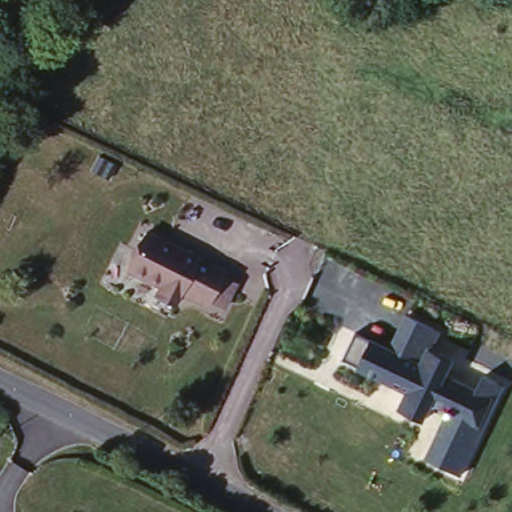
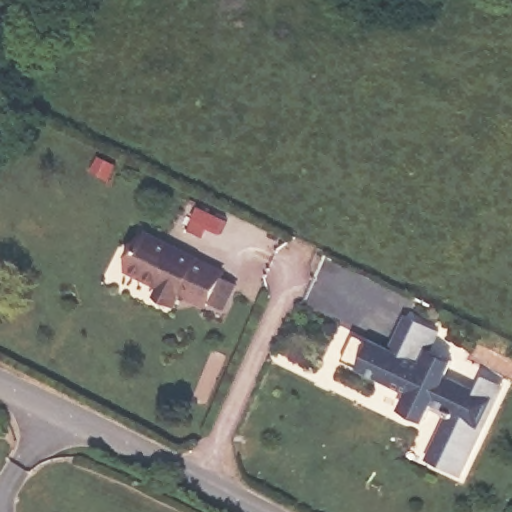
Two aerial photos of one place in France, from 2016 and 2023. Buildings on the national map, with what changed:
unchanged [(162,293),(164,289),(167,282),(135,265),(154,230),(231,270),(212,305),(186,291),(182,298),(180,303),(162,293)]
unchanged [(388,347),(403,315),(436,330),(426,350),(453,360),(444,378),(459,385),(467,369),(502,383),(456,477),(422,461),(444,414),(430,407),(422,420),(397,411),(404,397),(386,390),(388,383),(339,362),(353,332),(388,347)]

